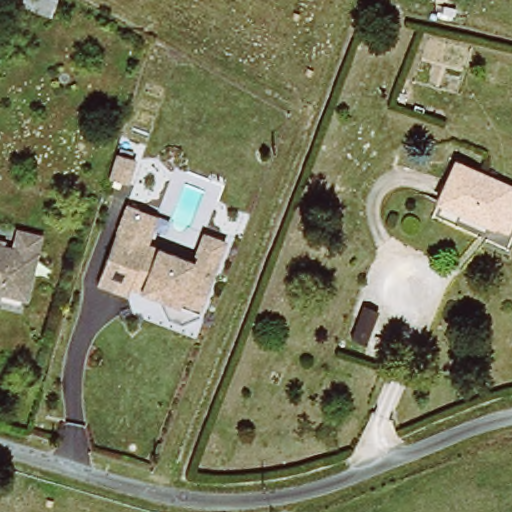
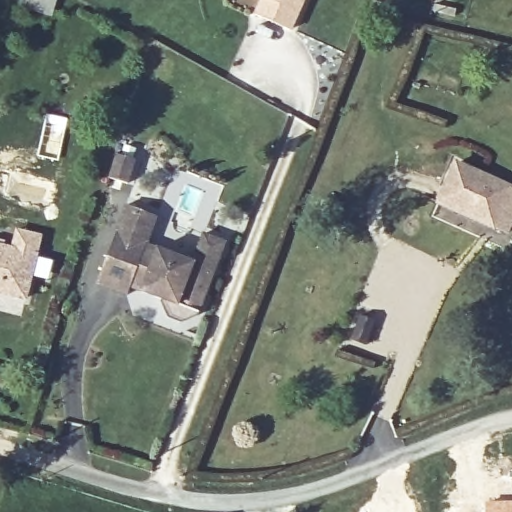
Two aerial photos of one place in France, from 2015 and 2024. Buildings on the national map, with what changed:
new [(292,31),(255,13),(260,0),(306,0),(292,31)]
unchanged [(115,152),(134,158),(127,182),(107,176),(115,152)]
unchanged [(487,230),(434,207),(452,165),(507,189),(512,191),(512,227),(507,239),(487,230)]
unchanged [(136,286),(132,294),(130,293),(102,283),(120,234),(131,203),(144,208),(149,210),(162,215),(152,240),(199,257),(209,229),(232,237),(219,271),(204,311),(188,318),(175,314),(167,298),(136,286)]
unchanged [(25,308),(0,301),(0,250),(40,261),(25,308)]
unchanged [(342,333),(357,299),(376,306),(363,342),(342,333)]
new [(512,512),(484,512),(483,501),(512,500),(512,512)]

